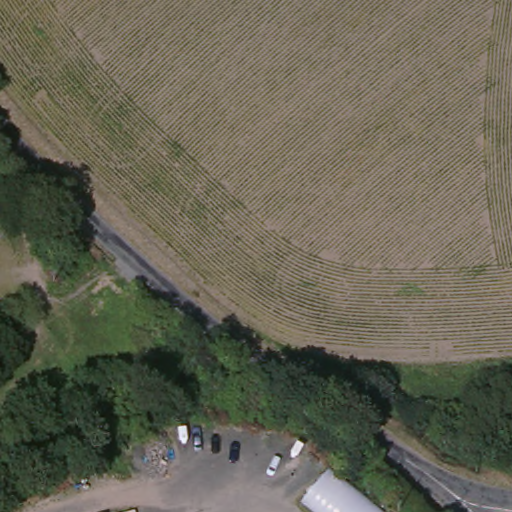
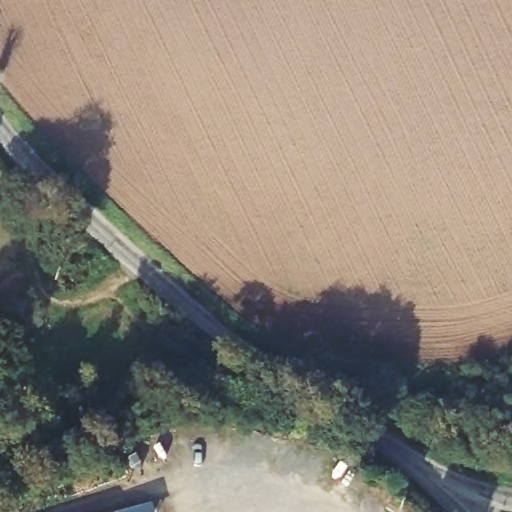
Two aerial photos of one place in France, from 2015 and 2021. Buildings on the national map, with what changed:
demolished [(324,470),(380,512),(313,512),(298,500),(324,470)]

